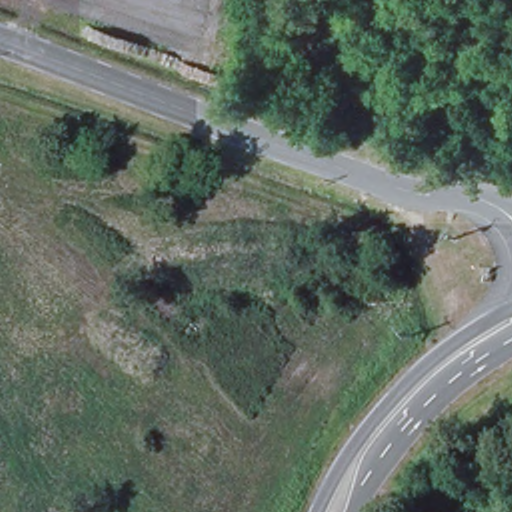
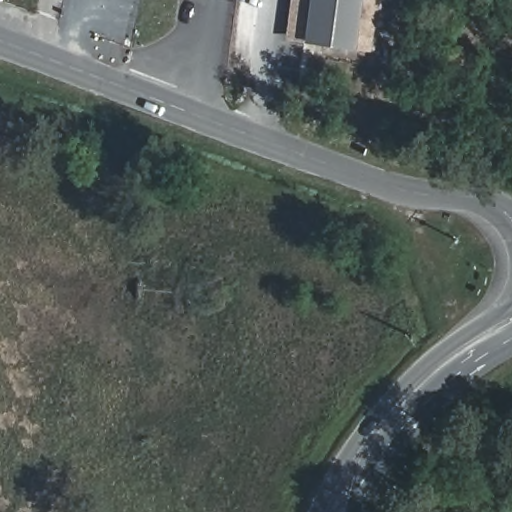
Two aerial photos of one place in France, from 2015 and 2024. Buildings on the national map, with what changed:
new [(305,42),(285,39),(290,0),(382,0),(375,51),(356,48),(305,42)]

